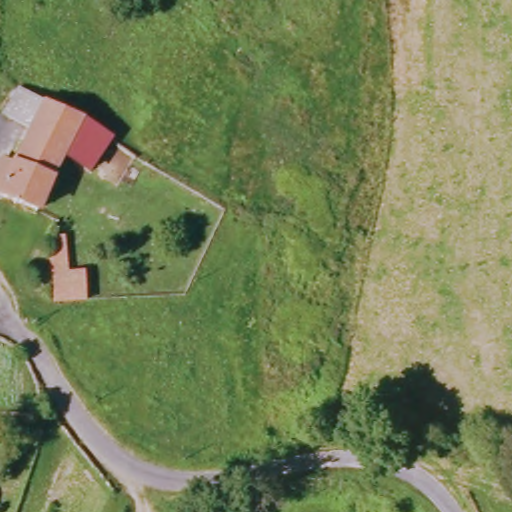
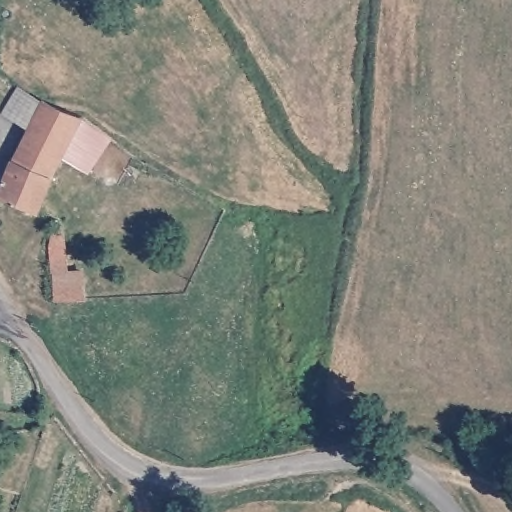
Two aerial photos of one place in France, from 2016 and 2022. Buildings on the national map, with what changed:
unchanged [(105,138),(85,165),(57,148),(33,208),(0,192),(27,124),(4,106),(13,92),(18,85),(52,105),(105,138)]
unchanged [(50,281),(50,256),(60,253),(60,279),(67,278),(82,276),(85,302),(71,302),(54,305),(50,281)]

